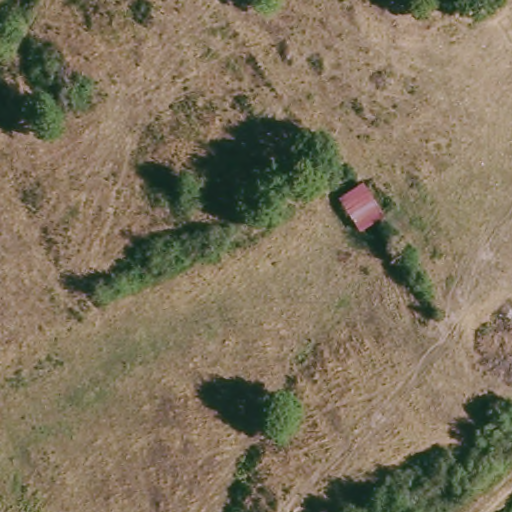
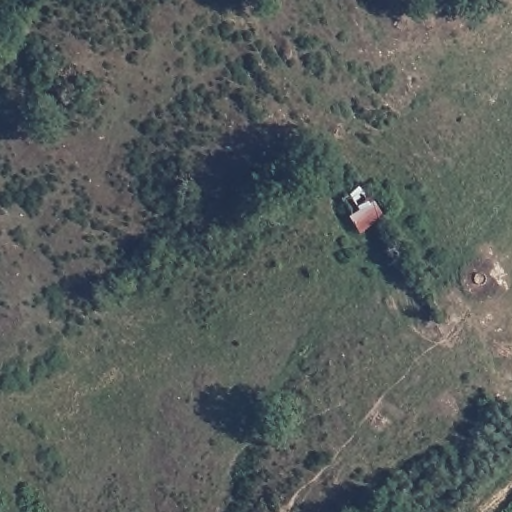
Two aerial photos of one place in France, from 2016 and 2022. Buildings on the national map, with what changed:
unchanged [(364,185),(389,216),(364,233),(340,200),(364,185)]

